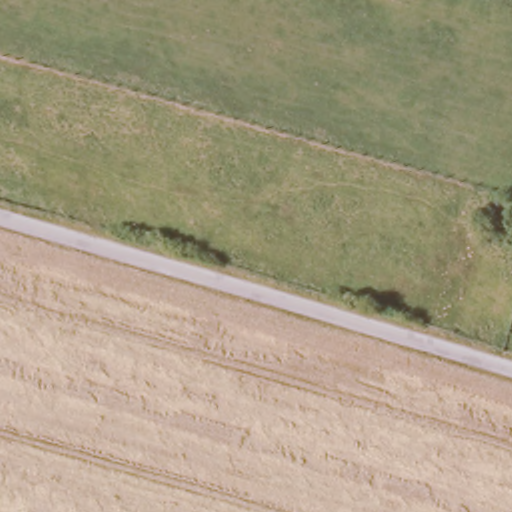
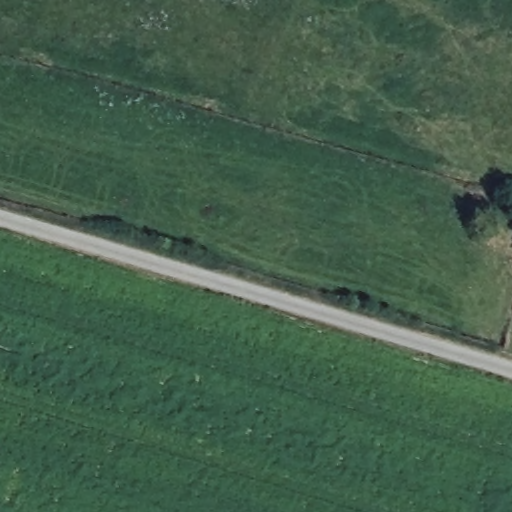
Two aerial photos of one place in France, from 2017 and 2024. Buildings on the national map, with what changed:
unchanged [(500,198),(512,202),(512,225),(494,220),(500,198)]

